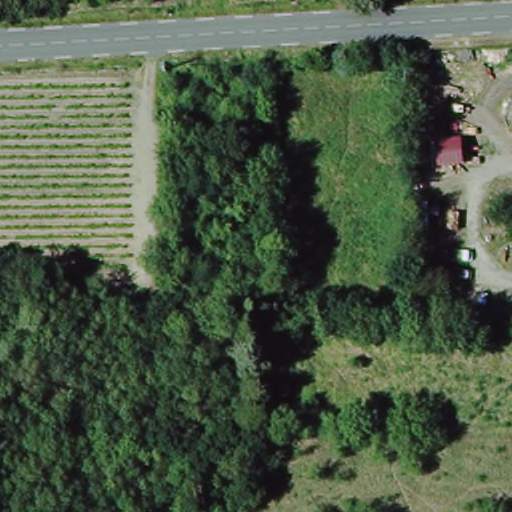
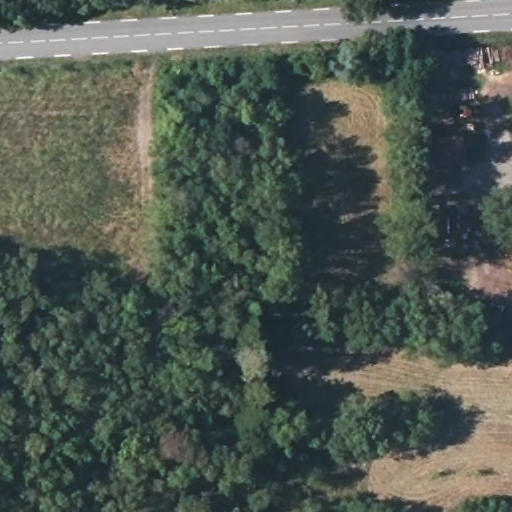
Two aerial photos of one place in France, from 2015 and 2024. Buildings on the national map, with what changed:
unchanged [(183,66),(190,60),(198,59),(197,74),(183,74),(183,66)]

